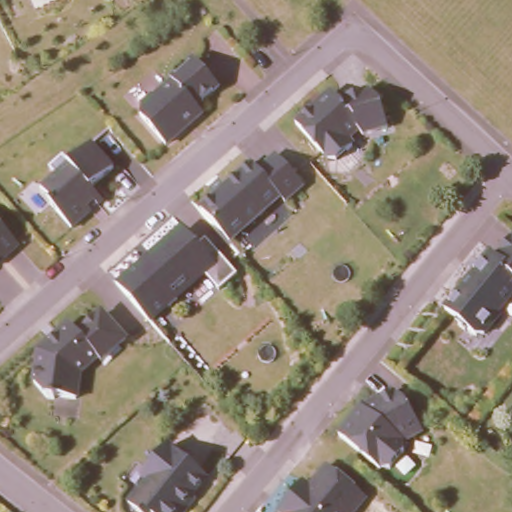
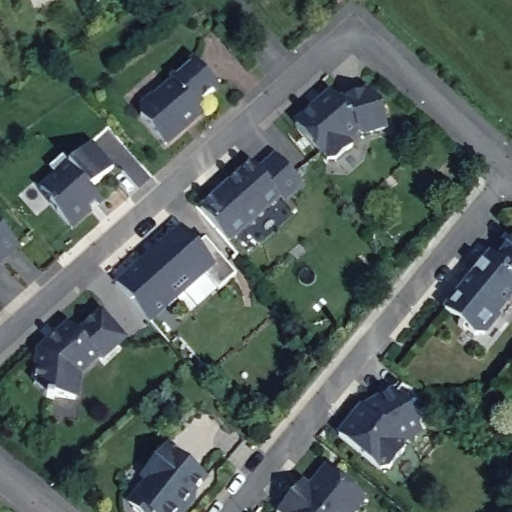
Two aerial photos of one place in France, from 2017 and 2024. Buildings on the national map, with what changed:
unchanged [(142,109),(172,85),(167,79),(195,59),(220,88),(200,103),(207,111),(171,144),(142,109)]
unchanged [(354,137),(357,143),(332,163),(325,155),(322,158),(300,136),(305,131),(297,121),(335,91),(345,103),(375,90),(386,127),(354,137)]
unchanged [(72,223),(43,182),(94,135),(120,164),(93,184),(102,196),(72,223)]
unchanged [(288,199),(284,196),(235,238),(206,204),(251,162),(262,173),(279,156),(305,184),(288,199)]
unchanged [(20,245),(0,263),(0,223),(20,245)]
unchanged [(219,288),(207,274),(155,320),(120,282),(182,228),(196,246),(207,236),(238,273),(219,288)]
unchanged [(495,255),(512,235),(512,294),(495,314),(499,318),(480,336),(445,306),(490,250),(495,255)]
unchanged [(102,361),(98,357),(80,373),(77,397),(35,392),(37,352),(78,323),(80,327),(102,311),(125,340),(102,361)]
unchanged [(399,436),(406,450),(385,469),(339,433),(362,406),(395,384),(419,428),(399,436)]
unchanged [(144,472),(172,443),(210,477),(183,512),(144,512),(130,502),(150,479),(144,472)]
unchanged [(304,481),(310,488),(330,466),(364,493),(349,512),(289,512),(285,507),(304,481)]

